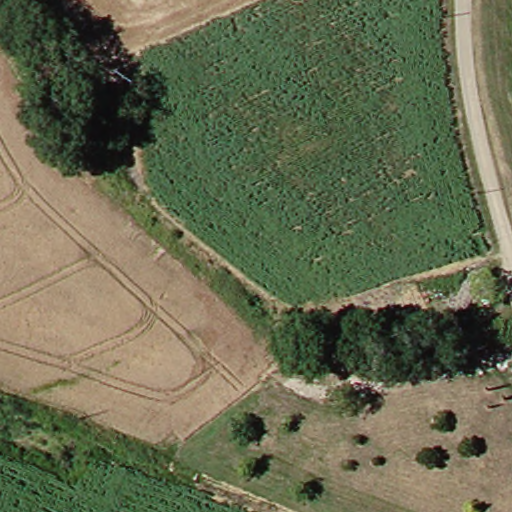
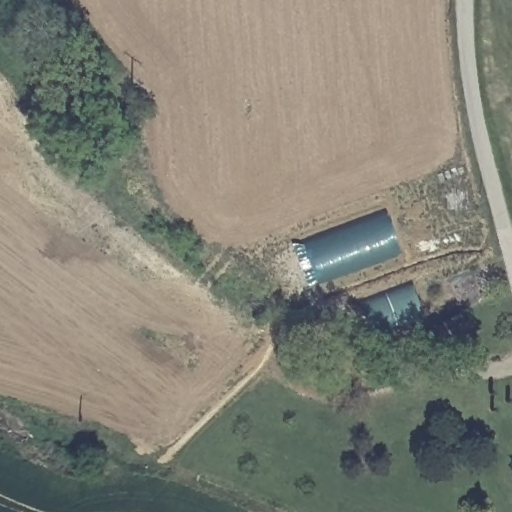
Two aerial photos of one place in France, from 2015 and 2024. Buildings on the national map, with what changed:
new [(300,244),(384,213),(399,255),(312,285),(300,244)]
new [(359,301),(411,281),(421,316),(370,333),(359,301)]

